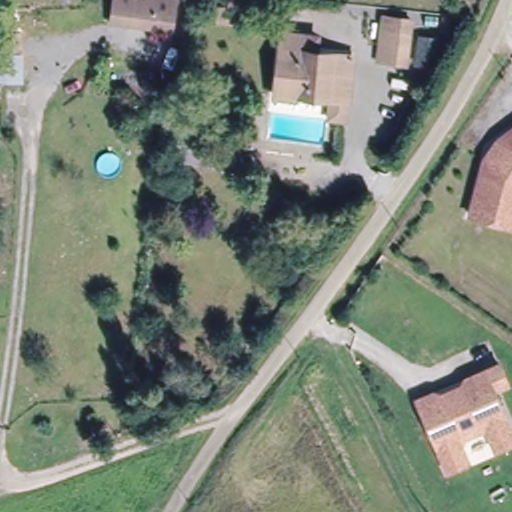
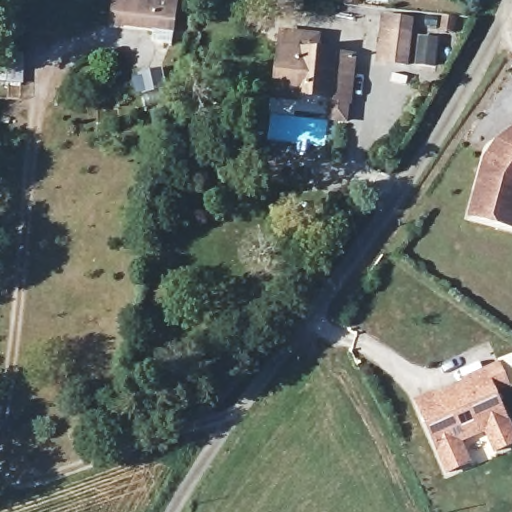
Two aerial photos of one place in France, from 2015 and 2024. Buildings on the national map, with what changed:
unchanged [(115,30),(118,0),(162,0),(184,3),(179,39),(115,30)]
unchanged [(376,65),(382,16),(415,19),(410,67),(376,65)]
unchanged [(350,110),(348,129),(326,126),(328,107),(300,106),(300,109),(272,105),(277,60),(279,35),(324,40),(321,53),(336,56),(358,60),(353,110),(350,110)]
unchanged [(5,84),(0,83),(0,55),(7,55),(5,84)]
unchanged [(262,145),(246,145),(247,130),(263,130),(262,145)]
unchanged [(488,158),(496,160),(504,149),(499,143),(512,133),(512,228),(472,217),(488,158)]
unchanged [(470,386),(469,382),(504,366),(512,385),(512,387),(499,393),(512,423),(512,448),(501,452),(493,435),(483,430),(469,436),(466,446),(474,465),(453,475),(421,403),(439,395),(458,403),(465,400),(470,386)]

